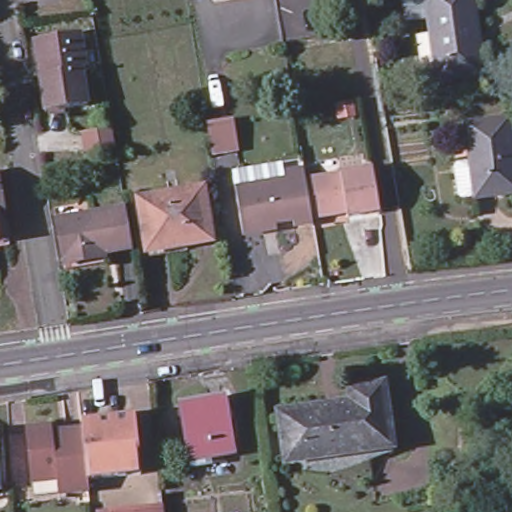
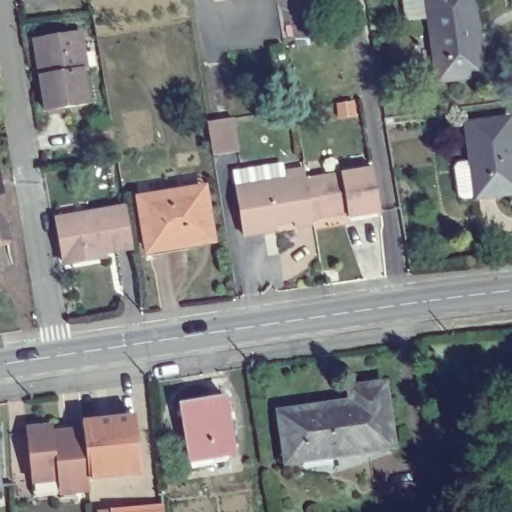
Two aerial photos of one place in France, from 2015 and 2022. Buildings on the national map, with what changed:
unchanged [(438,85),(426,0),(475,0),(484,79),(438,85)]
unchanged [(83,68),(78,69),(84,104),(42,111),(36,77),(31,39),(36,38),(78,32),(83,68)]
unchanged [(512,193),(474,198),(465,124),(509,118),(512,140),(512,193)]
unchanged [(216,154),(212,131),(211,124),(235,121),(236,128),(239,150),(216,154)]
unchanged [(117,147),(91,150),(88,133),(114,130),(117,147)]
unchanged [(276,235),(244,241),(236,193),(233,177),(267,172),(284,169),(286,178),(307,174),(309,187),(316,226),(316,229),(295,233),(294,225),(276,228),(276,235)]
unchanged [(376,176),(383,218),(351,224),(351,217),(344,218),(344,221),(316,226),(309,187),(376,176)]
unchanged [(202,193),(211,246),(181,251),(181,248),(146,254),(137,203),(202,193)]
unchanged [(8,244),(0,245),(0,201),(8,244)]
unchanged [(56,221),(71,218),(125,208),(132,249),(88,256),(88,261),(79,263),(63,265),(56,221)]
unchanged [(351,405),(349,392),(384,387),(393,451),(332,460),(329,458),(287,462),(279,416),(351,405)]
unchanged [(180,408),(226,398),(237,455),(191,464),(180,408)]
unchanged [(79,420),(97,418),(133,415),(138,471),(103,475),(85,477),(80,428),(79,420)]
unchanged [(23,427),(39,425),(48,424),(48,431),(80,428),(85,477),(86,489),(61,492),(54,493),(30,495),(28,480),(23,427)]
unchanged [(162,512),(110,512),(109,501),(161,496),(162,512)]

